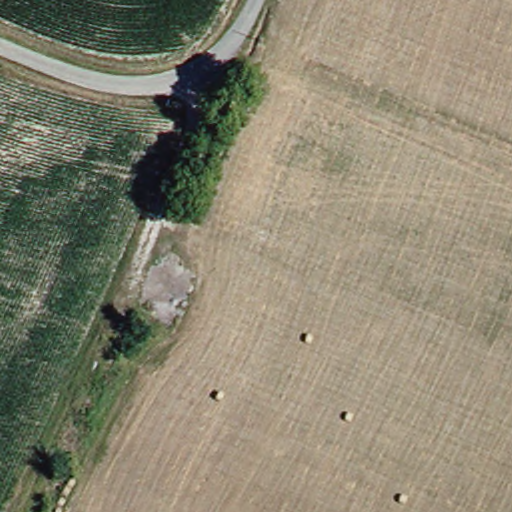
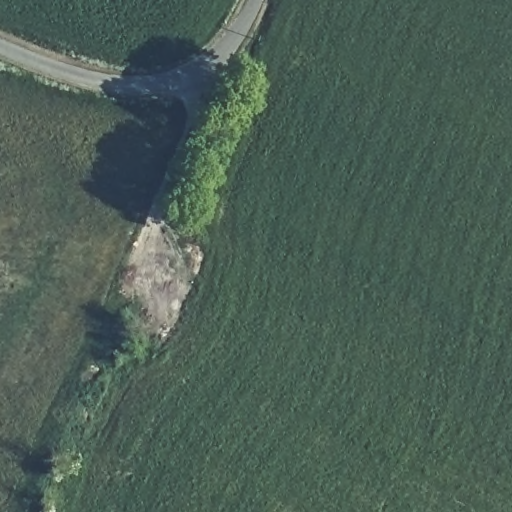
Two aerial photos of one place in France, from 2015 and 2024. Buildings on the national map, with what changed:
[]

